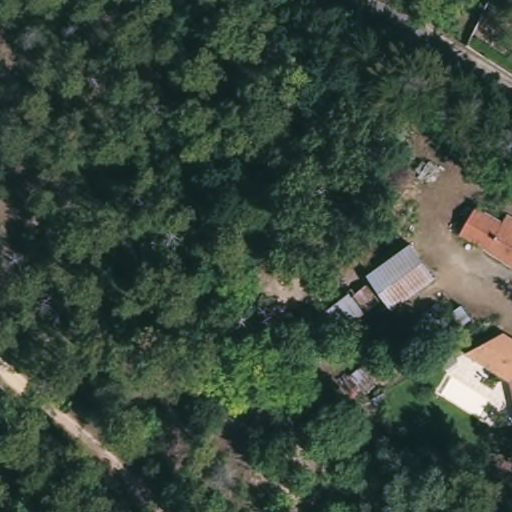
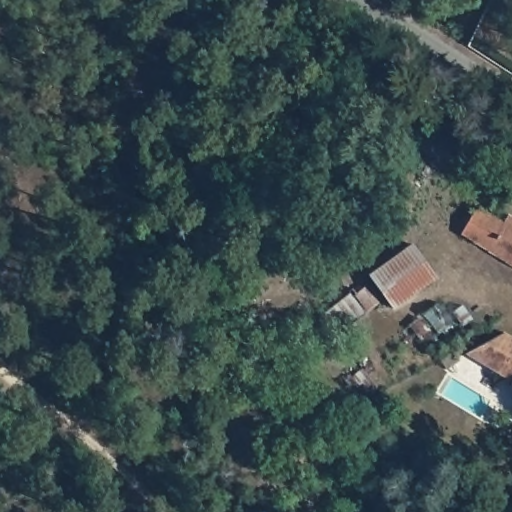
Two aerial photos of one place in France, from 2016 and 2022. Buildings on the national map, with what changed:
unchanged [(472,215),(499,230),(504,222),(512,227),(512,271),(457,238),(472,215)]
unchanged [(430,267),(397,308),(362,281),(396,239),(430,267)]
unchanged [(393,316),(379,326),(366,310),(379,301),(393,316)]
unchanged [(483,362),(466,353),(469,351),(504,331),(512,336),(512,379),(483,362)]

